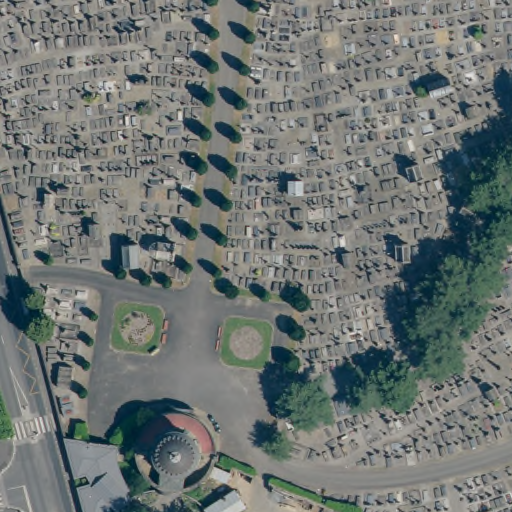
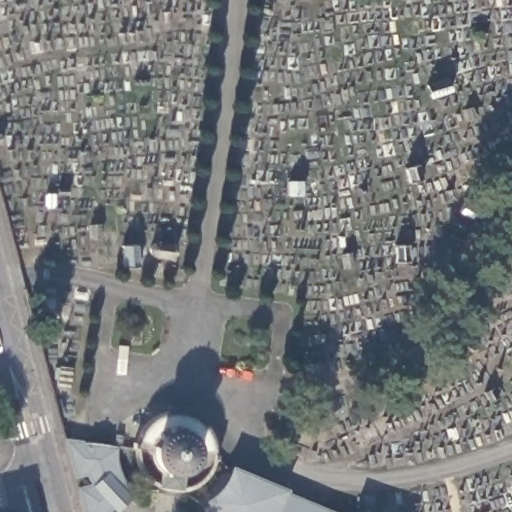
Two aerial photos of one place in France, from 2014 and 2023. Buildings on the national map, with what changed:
unchanged [(224,475),(205,470),(201,475),(195,480),(188,484),(179,486),(179,491),(154,488),(155,482),(149,479),(144,475),(139,470),(136,464),(134,457),(133,451),(132,444),(133,437),(135,431),(138,425),(143,419),(148,415),(154,410),(160,408),(166,406),(168,402),(191,405),(190,410),(196,413),(201,417),(205,422),(209,428),(211,435),(213,442),(213,450),(215,450),(214,456),(212,455),(209,462),(226,466),(224,475)]
unchanged [(128,492),(125,494),(124,495),(129,499),(127,500),(124,503),(119,507),(115,511),(114,512),(110,508),(106,512),(82,512),(76,491),(91,487),(94,485),(88,473),(73,477),(63,441),(64,440),(113,445),(112,448),(112,454),(113,460),(114,466),(116,472),(119,478),(121,483),(125,489),(128,492)]
new [(206,502),(222,487),(229,477),(233,466),(289,490),(287,493),(336,512),(212,512),(206,502)]
demolished [(202,509),(232,490),(243,507),(235,512),(204,512),(202,509)]

